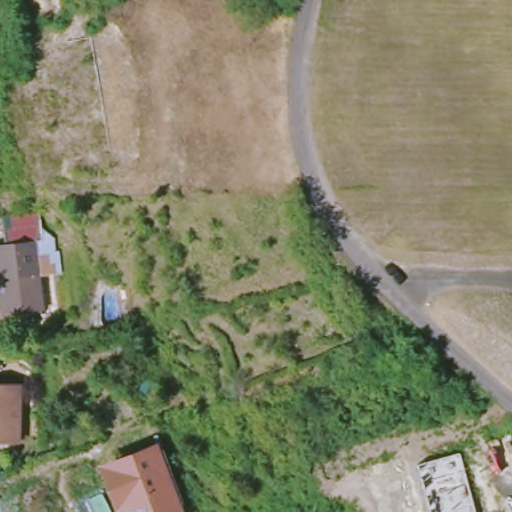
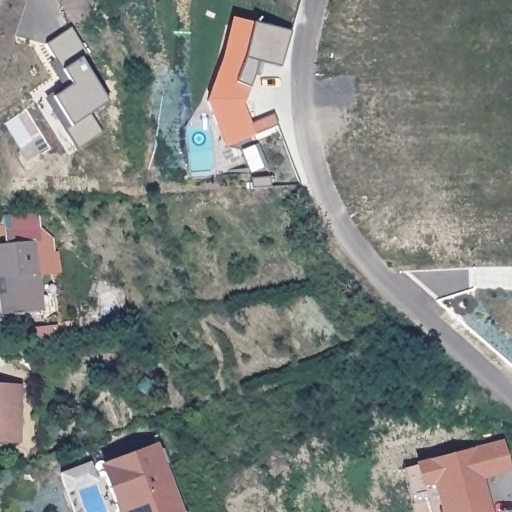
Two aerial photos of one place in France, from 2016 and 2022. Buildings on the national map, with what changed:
new [(224,62),(232,29),(251,34),(253,26),(293,37),(284,73),(260,67),(254,96),(276,129),(255,138),(237,145),(229,123),(218,127),(208,104),(224,62)]
new [(89,53),(82,59),(109,99),(93,111),(105,131),(78,149),(45,99),(63,87),(50,63),(55,59),(46,43),(72,27),(89,53)]
new [(229,123),(237,145),(255,138),(270,175),(271,190),(251,191),(250,177),(241,152),(227,149),(218,127),(229,123)]
unchanged [(36,310),(18,312),(19,314),(7,315),(7,313),(0,313),(0,292),(0,245),(2,245),(0,225),(0,220),(34,217),(36,242),(33,242),(36,272),(33,273),(36,310)]
unchanged [(13,439),(0,438),(0,383),(15,384),(13,439)]
new [(502,441),(510,471),(483,478),(491,512),(440,512),(426,461),(502,441)]
unchanged [(160,446),(184,512),(116,512),(100,466),(160,446)]

